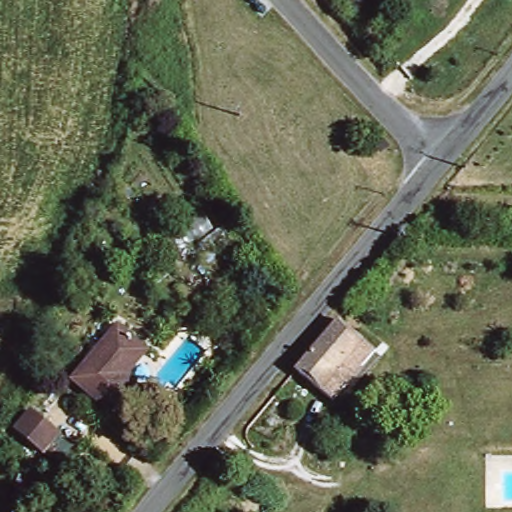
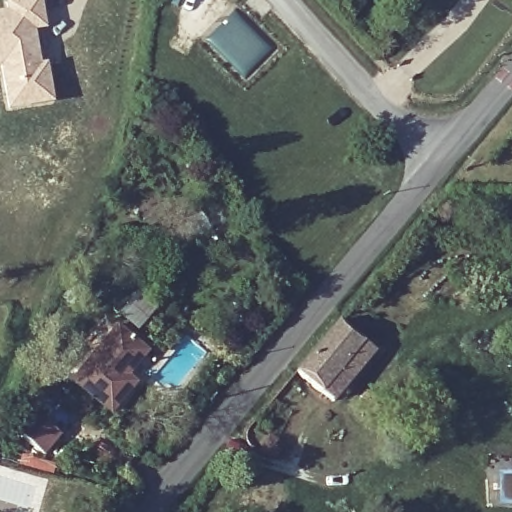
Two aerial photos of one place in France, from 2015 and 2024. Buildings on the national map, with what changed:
new [(2,10),(1,0),(42,0),(47,30),(35,32),(41,62),(47,61),(54,104),(5,113),(0,89),(0,10),(2,10)]
unchanged [(294,367),(336,316),(363,341),(358,353),(366,361),(357,389),(340,374),(329,389),(294,367)]
unchanged [(113,403),(74,370),(116,321),(133,337),(145,346),(126,365),(137,376),(119,397),(113,403)]
unchanged [(49,445),(29,427),(50,400),(70,418),(49,445)]

